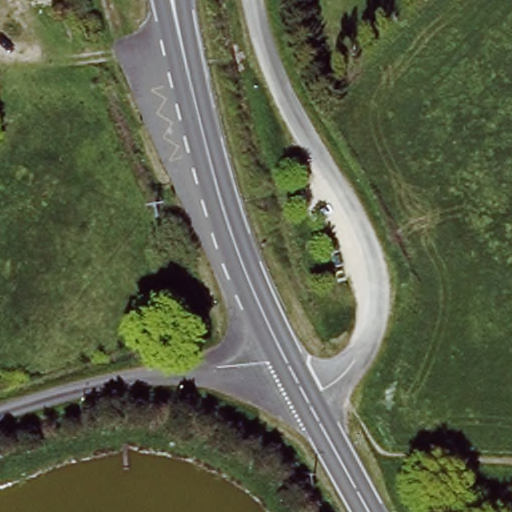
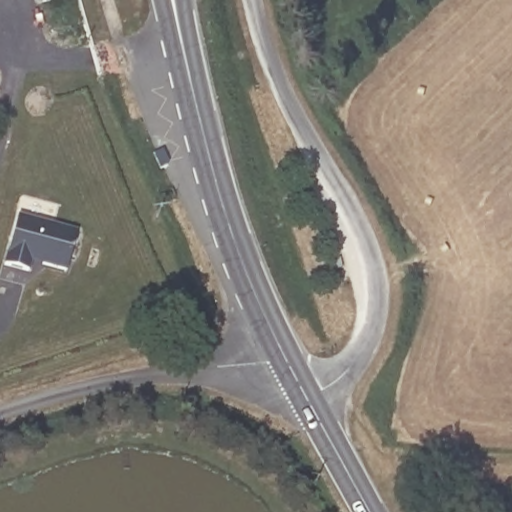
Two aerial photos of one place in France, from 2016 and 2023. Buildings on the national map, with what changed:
unchanged [(37,0),(50,0),(38,3),(37,0)]
new [(17,214),(77,231),(66,272),(32,261),(30,272),(3,263),(17,214)]

